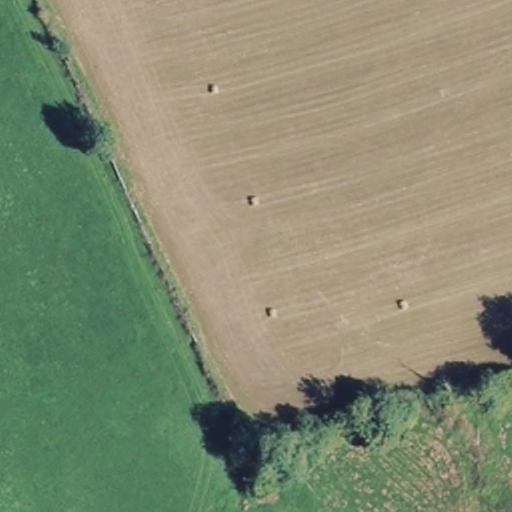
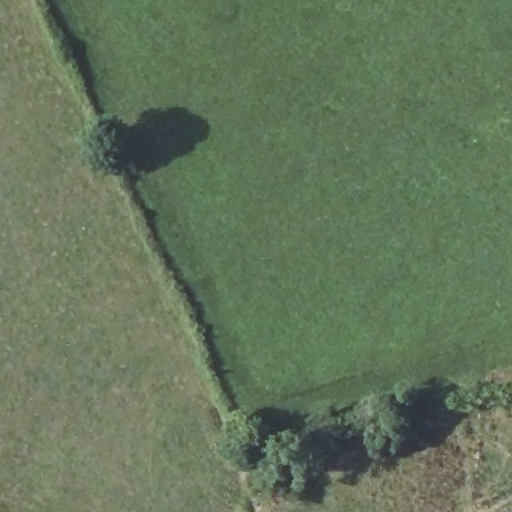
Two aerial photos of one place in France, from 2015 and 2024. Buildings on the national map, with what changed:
[]

